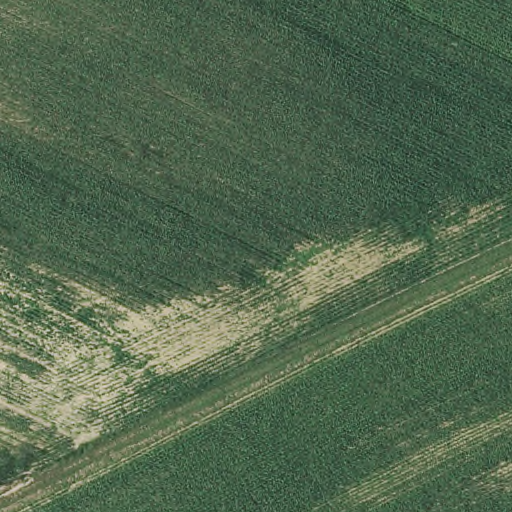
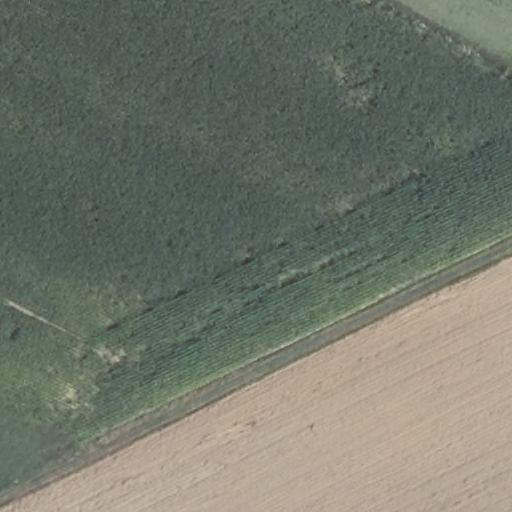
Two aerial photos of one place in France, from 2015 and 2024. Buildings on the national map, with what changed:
[]

